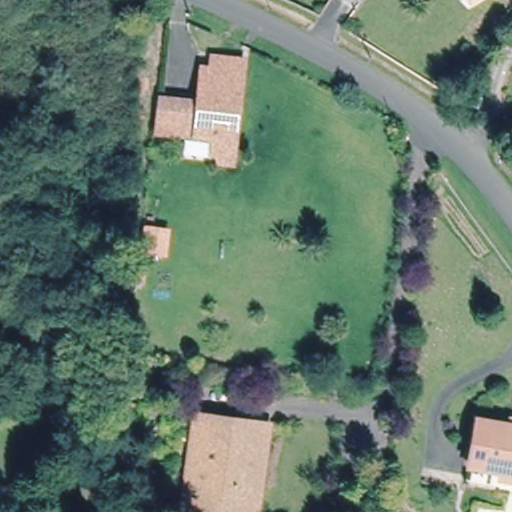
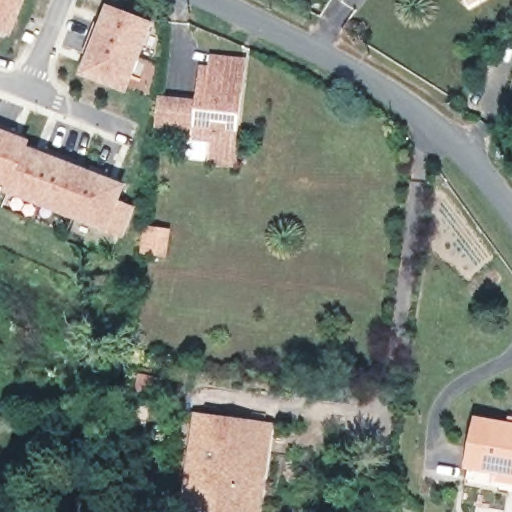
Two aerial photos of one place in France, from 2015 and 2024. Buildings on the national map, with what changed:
new [(11,36),(0,32),(0,0),(26,0),(11,36)]
new [(155,23),(127,96),(79,76),(87,56),(82,53),(95,23),(99,25),(108,3),(155,23)]
unchanged [(207,68),(216,69),(218,51),(248,55),(235,156),(214,153),(218,129),(200,126),(204,94),(207,68)]
unchanged [(200,126),(167,122),(171,90),(204,94),(200,126)]
new [(29,146),(128,185),(121,200),(138,207),(124,237),(109,231),(7,193),(10,185),(0,181),(0,127),(32,139),(29,146)]
unchanged [(170,229),(166,252),(146,249),(150,226),(170,229)]
unchanged [(512,416),(512,468),(504,467),(502,480),(471,474),(483,411),(512,416)]
unchanged [(200,414),(238,419),(267,424),(257,512),(186,512),(197,435),(200,414)]

